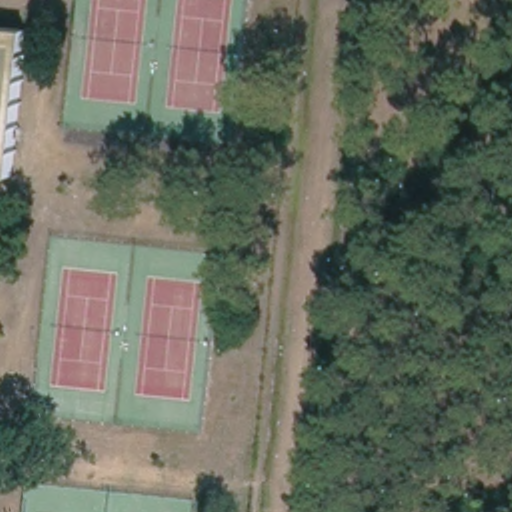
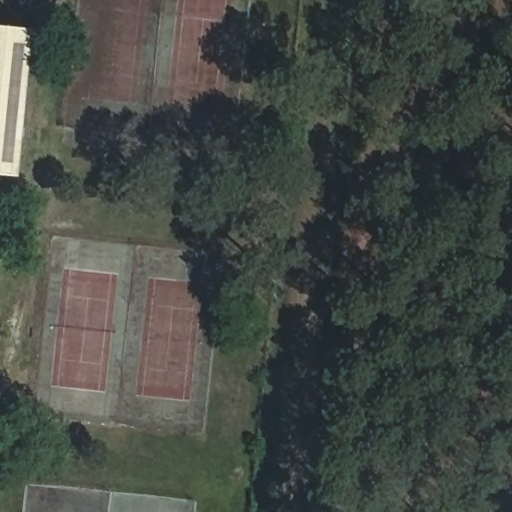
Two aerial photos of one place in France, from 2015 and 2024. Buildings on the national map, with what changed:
unchanged [(10,177),(0,176),(0,29),(26,31),(10,177)]

